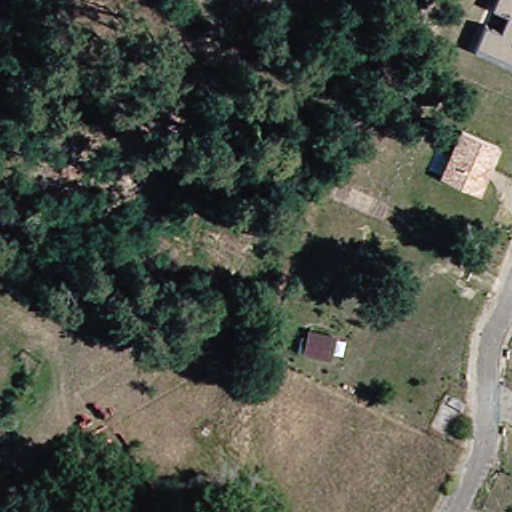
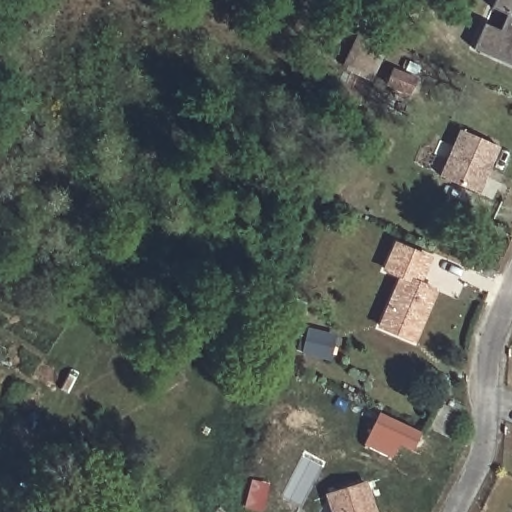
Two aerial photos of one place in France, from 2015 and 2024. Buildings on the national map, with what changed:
unchanged [(506,13),(511,0),(512,0),(512,15),(506,13)]
unchanged [(487,53),(499,28),(512,34),(512,64),(487,53)]
unchanged [(501,144),(480,192),(439,175),(460,126),(501,144)]
new [(422,286),(439,294),(419,342),(380,325),(400,278),(384,271),(397,240),(434,255),(422,286)]
unchanged [(313,332),(334,335),(330,357),(308,353),(313,332)]
demolished [(341,358),(363,361),(359,383),(337,379),(341,358)]
new [(380,414),(422,431),(415,449),(401,444),(395,458),(367,447),(380,414)]
new [(323,512),(332,497),(368,486),(376,512),(323,512)]

